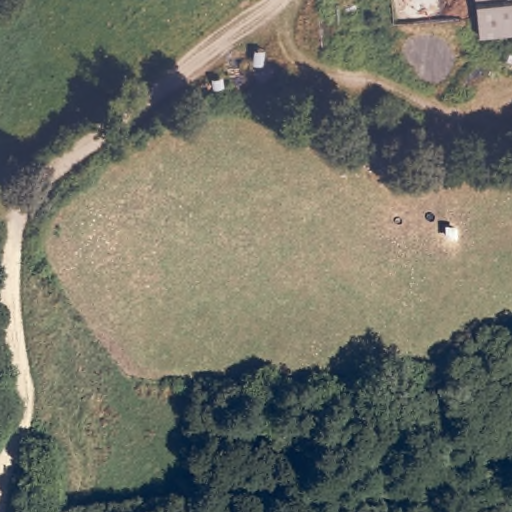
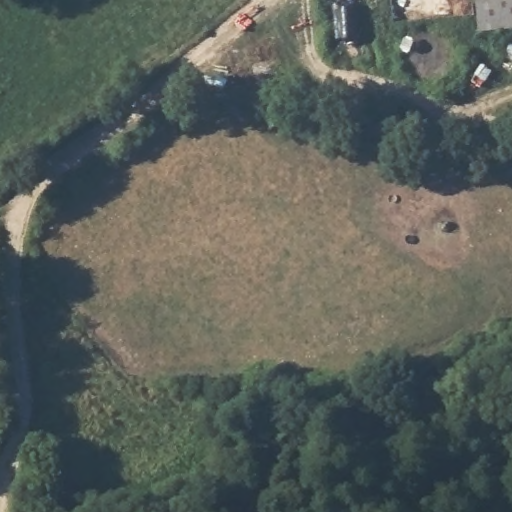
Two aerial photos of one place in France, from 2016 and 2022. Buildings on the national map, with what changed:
unchanged [(487,28),(483,0),(512,0),(512,24),(487,28)]

